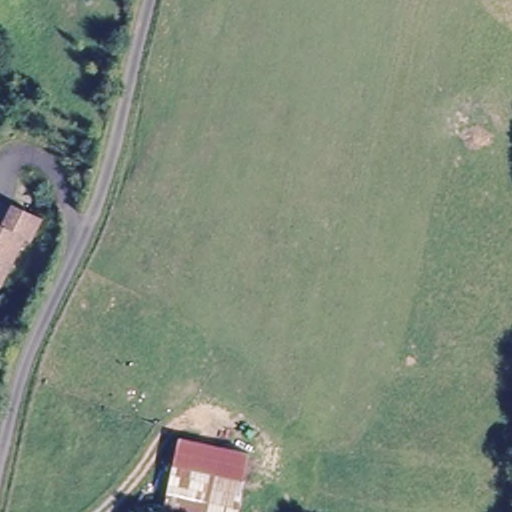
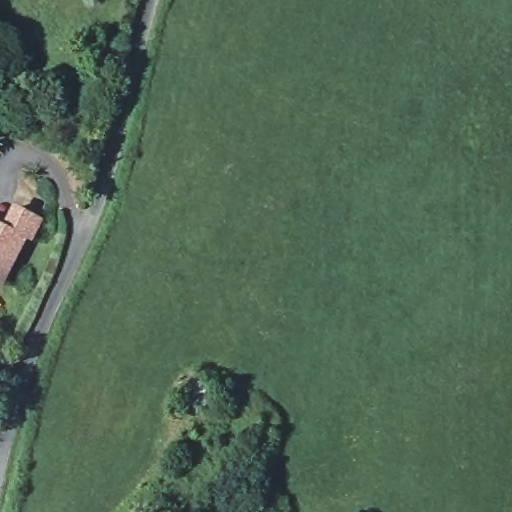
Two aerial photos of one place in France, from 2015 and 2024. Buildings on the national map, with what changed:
unchanged [(14,211),(21,214),(37,221),(27,244),(19,240),(0,282),(0,236),(2,237),(14,211)]
demolished [(164,512),(178,438),(249,456),(239,512),(164,512)]

